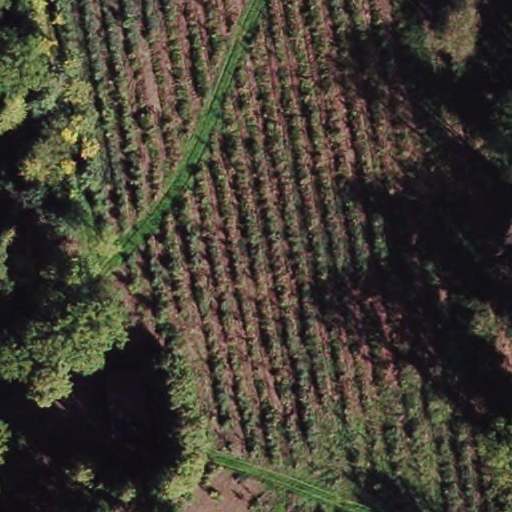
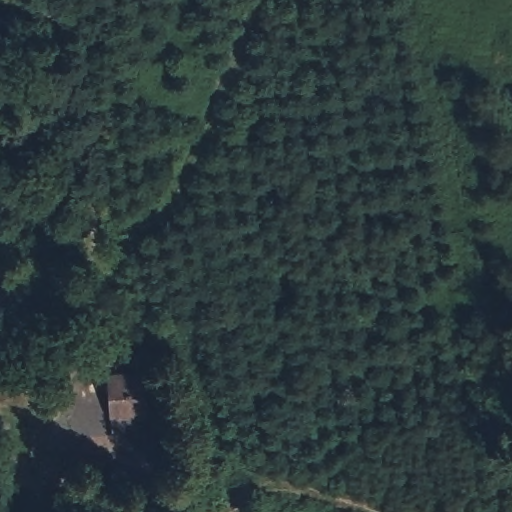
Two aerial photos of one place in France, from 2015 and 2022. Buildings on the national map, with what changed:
unchanged [(170,366),(169,397),(106,403),(107,368),(170,366)]

